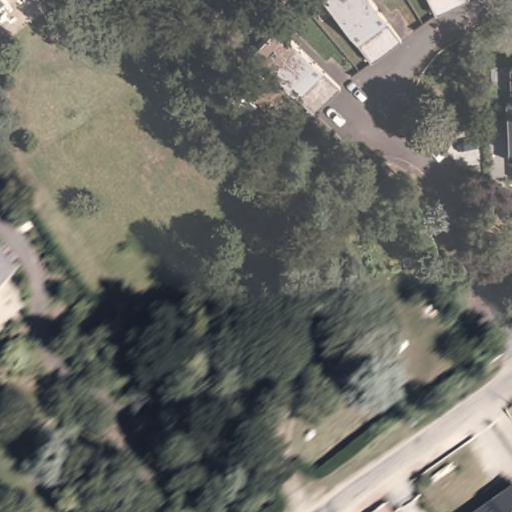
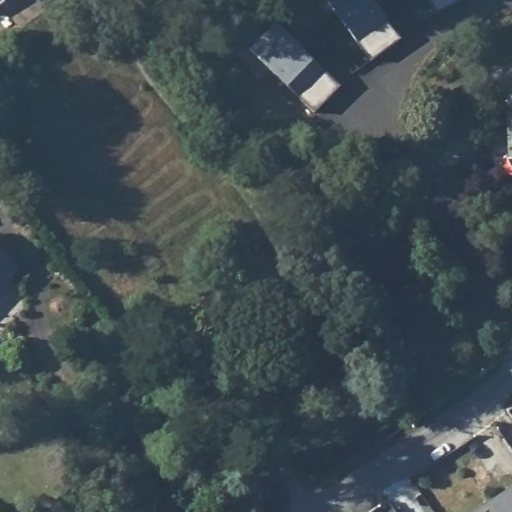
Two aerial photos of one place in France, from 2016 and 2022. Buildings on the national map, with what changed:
unchanged [(2,0),(0,2),(0,0),(2,0)]
unchanged [(356,40),(348,30),(325,0),(373,0),(378,8),(386,19),(400,36),(369,59),(356,40)]
unchanged [(429,0),(457,0),(434,11),(429,0)]
unchanged [(315,111),(296,94),(286,84),(249,49),(274,21),(310,58),(320,68),(338,86),(315,111)]
unchanged [(512,63),(512,94),(508,64),(512,63)]
unchanged [(512,99),(512,155),(511,155),(503,100),(512,99)]
unchanged [(7,265),(0,273),(0,258),(7,265)]
unchanged [(512,488),(512,512),(478,512),(512,488)]

